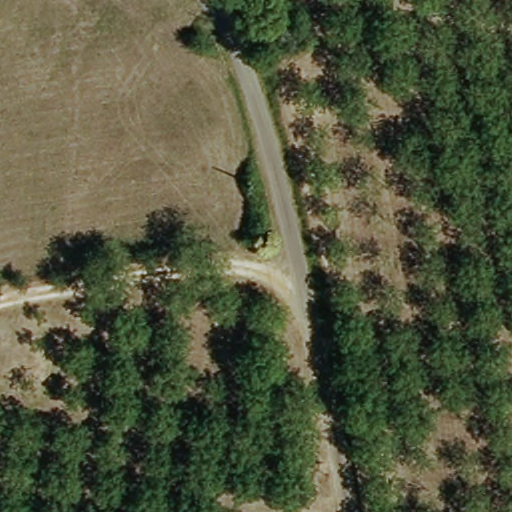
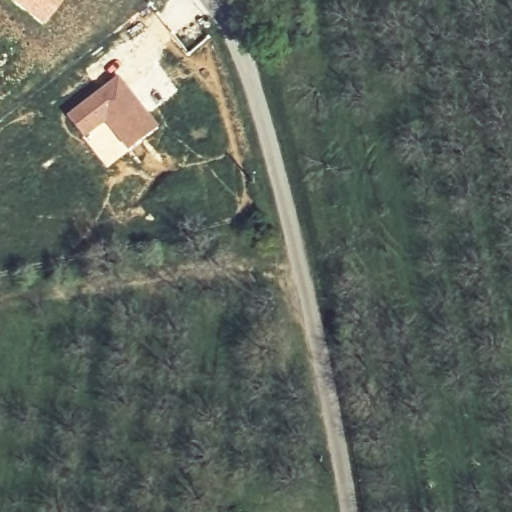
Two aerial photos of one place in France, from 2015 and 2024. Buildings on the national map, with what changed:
new [(13,0),(58,0),(41,22),(13,0)]
new [(119,72),(161,126),(129,152),(104,123),(84,139),(66,116),(119,72)]
new [(104,123),(129,152),(107,169),(84,139),(104,123)]

